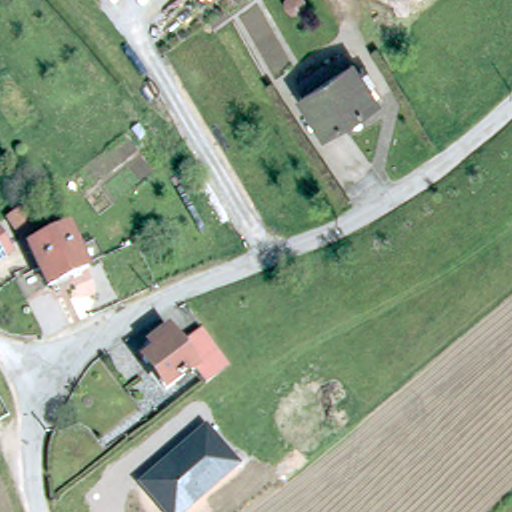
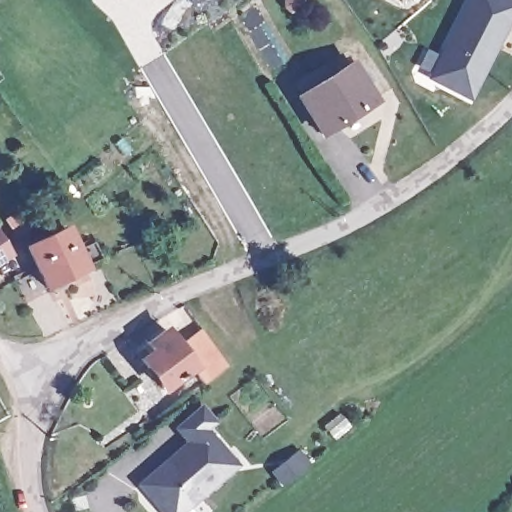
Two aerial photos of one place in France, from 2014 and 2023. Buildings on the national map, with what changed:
new [(304,0),(304,6),(299,12),(291,12),(286,7),(286,0),(304,0)]
new [(427,79),(465,0),(512,0),(512,20),(472,100),(427,79)]
unchanged [(349,63),(353,62),(378,98),(326,132),(296,85),(344,54),(349,63)]
unchanged [(17,239),(8,225),(7,224),(21,214),(22,215),(31,228),(17,239)]
unchanged [(87,264),(48,282),(28,242),(68,224),(87,264)]
unchanged [(0,262),(0,235),(13,253),(0,262)]
unchanged [(195,367),(192,370),(166,389),(143,358),(154,351),(148,343),(167,329),(181,347),(195,367)]
unchanged [(230,367),(206,387),(192,370),(195,367),(181,347),(203,330),(230,367)]
unchanged [(240,468),(189,512),(160,512),(136,483),(202,425),(240,468)]
new [(274,470),(299,450),(309,465),(284,486),(274,470)]

